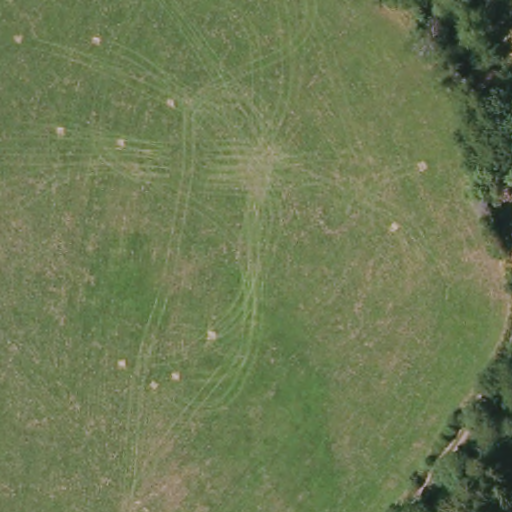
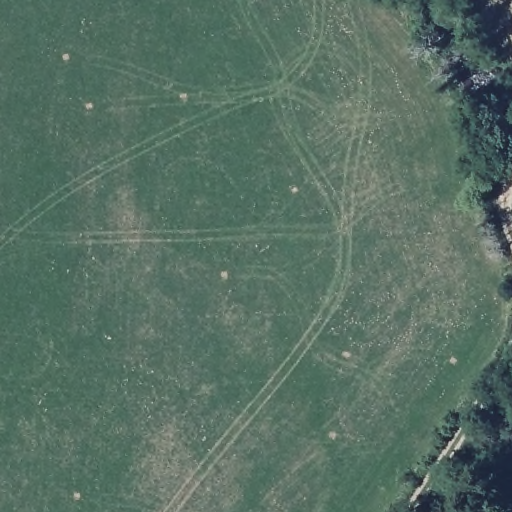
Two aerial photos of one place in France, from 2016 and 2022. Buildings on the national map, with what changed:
[]

